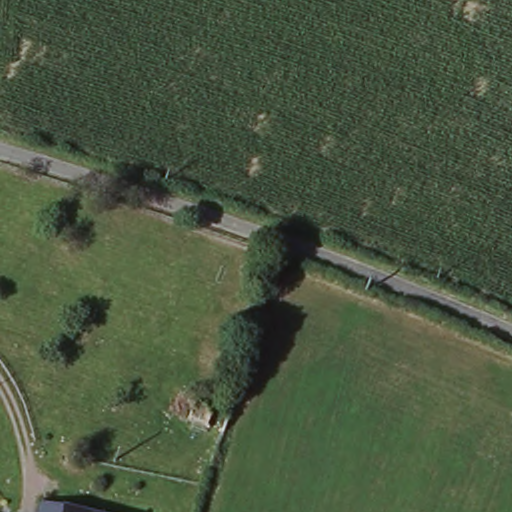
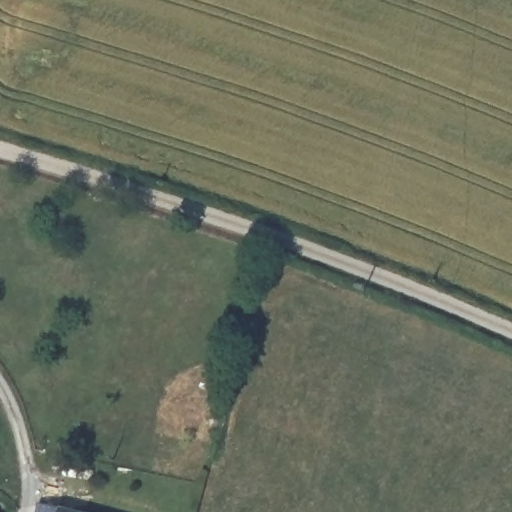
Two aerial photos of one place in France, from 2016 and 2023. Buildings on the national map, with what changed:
unchanged [(222,437),(177,420),(184,402),(230,419),(222,437)]
unchanged [(39,509),(49,512),(38,512),(39,509)]

